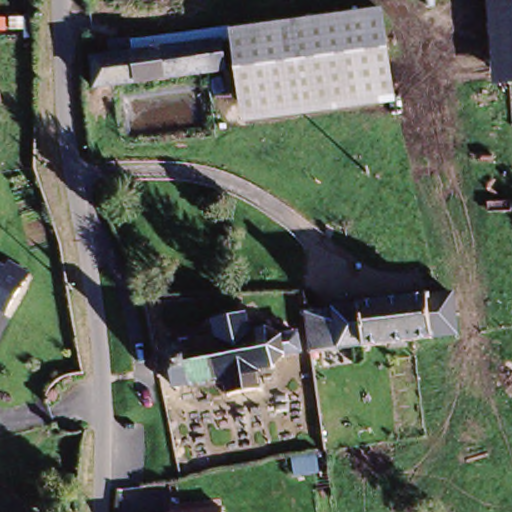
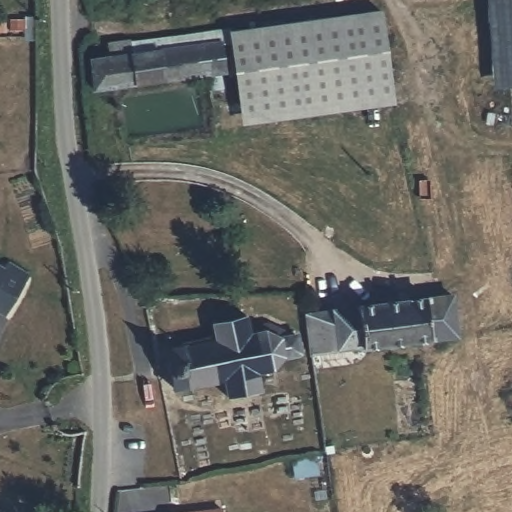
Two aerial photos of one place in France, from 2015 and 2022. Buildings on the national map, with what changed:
unchanged [(493,0),(512,0),(512,81),(499,81),(493,0)]
unchanged [(383,9),(396,104),(241,125),(229,30),(383,9)]
unchanged [(228,78),(101,88),(98,57),(115,56),(115,39),(140,37),(141,54),(227,48),(228,78)]
unchanged [(8,312),(0,308),(0,256),(35,278),(8,312)]
unchanged [(332,310),(359,305),(430,297),(455,293),(460,337),(436,340),(364,349),(337,350),(313,352),(306,315),(332,310)]
unchanged [(272,322),(290,319),(295,340),(274,343),(275,352),(258,355),(261,371),(227,377),(224,361),(210,364),(168,371),(160,335),(215,322),(212,310),(247,302),(251,315),(268,312),(272,322)]

